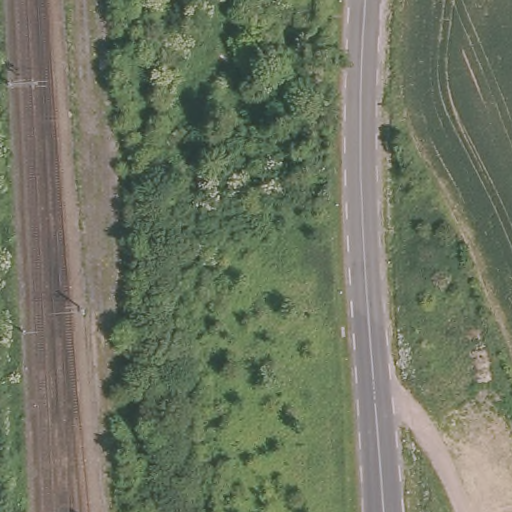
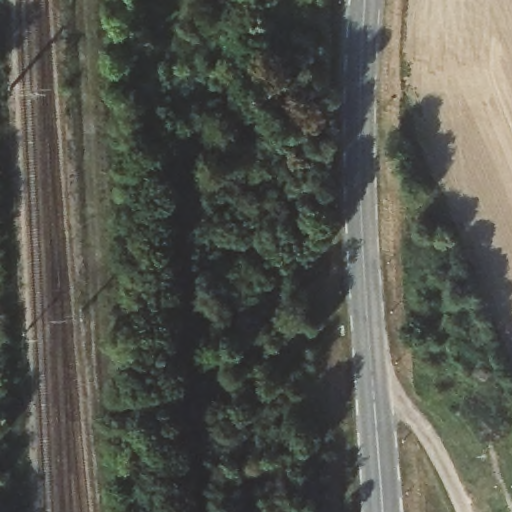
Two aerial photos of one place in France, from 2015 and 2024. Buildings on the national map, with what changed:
unchanged [(289,34),(277,66),(266,64),(238,59),(248,25),(269,29),(289,34)]

